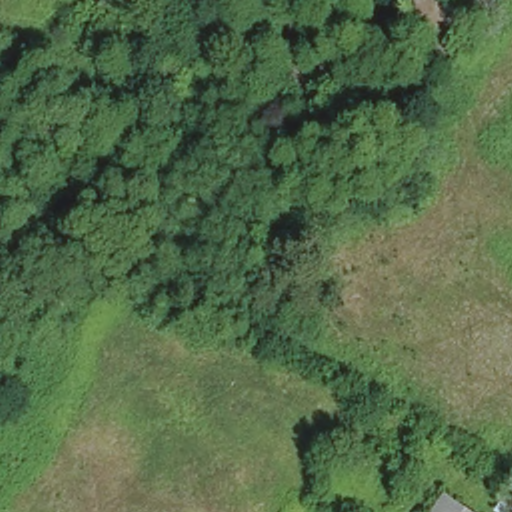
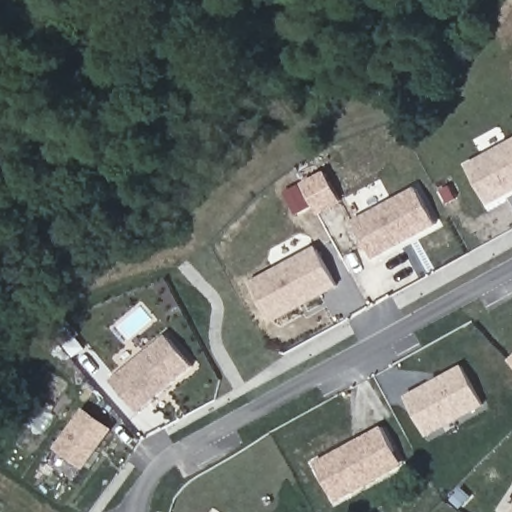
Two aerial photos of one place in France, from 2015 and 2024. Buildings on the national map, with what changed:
new [(485,204),(464,166),(512,139),(512,189),(485,204)]
new [(414,188),(433,224),(371,258),(351,222),(414,188)]
new [(314,248),(335,285),(269,321),(249,283),(314,248)]
new [(162,335),(189,366),(134,412),(107,381),(162,335)]
new [(510,361),(512,358),(512,363),(510,361)]
new [(459,369),(479,406),(423,436),(402,398),(459,369)]
new [(84,408),(114,430),(84,471),(55,449),(84,408)]
new [(350,444),(379,428),(392,451),(399,464),(386,472),(332,500),(312,464),(340,449),(350,444)]
demolished [(512,497),(512,512),(494,512),(492,510),(506,492),(512,497)]
demolished [(470,512),(433,512),(445,494),(470,512)]
new [(510,512),(512,509),(512,512),(510,512)]

